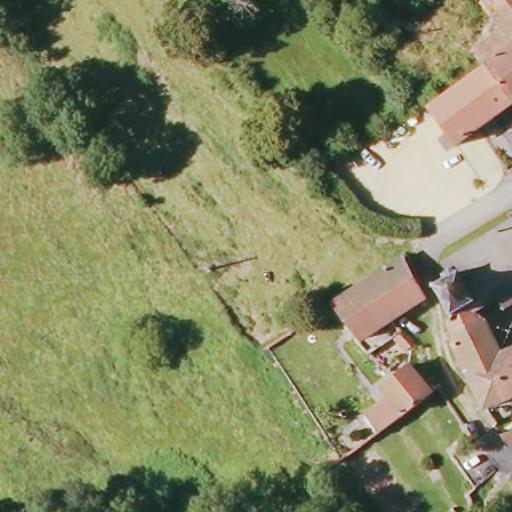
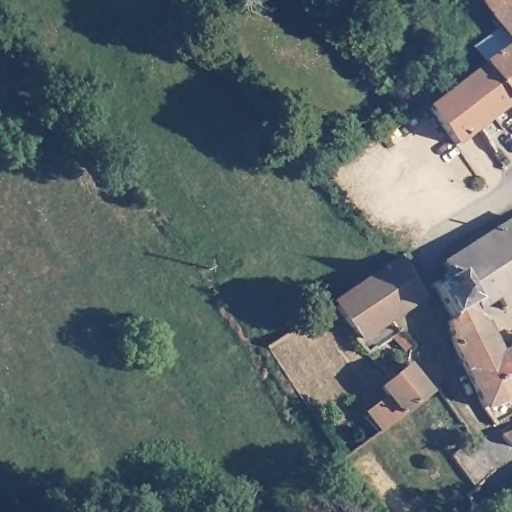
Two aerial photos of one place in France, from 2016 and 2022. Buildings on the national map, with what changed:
unchanged [(512,43),(512,45),(484,66),(476,56),(473,51),(500,30),(478,3),(481,0),(512,0),(512,39),(510,41),(512,43)]
unchanged [(484,66),(512,45),(512,100),(510,101),(484,66)]
unchanged [(484,66),(510,101),(505,106),(477,126),(502,168),(463,195),(438,154),(450,145),(425,110),(484,66)]
unchanged [(492,302),(470,317),(463,309),(446,319),(430,292),(438,286),(436,281),(442,277),(437,268),(512,220),(512,304),(498,313),(492,302)]
unchanged [(406,258),(415,304),(356,345),(330,308),(356,290),(406,258)]
unchanged [(462,380),(447,343),(445,332),(444,325),(450,320),(462,319),(474,322),(483,331),(496,359),(462,380)]
unchanged [(512,398),(481,414),(462,380),(496,359),(512,352),(512,398)]
unchanged [(375,434),(365,418),(386,401),(380,390),(409,368),(428,394),(375,434)]
unchanged [(497,443),(512,434),(512,452),(509,452),(497,443)]
unchanged [(512,488),(512,495),(508,490),(512,488)]

